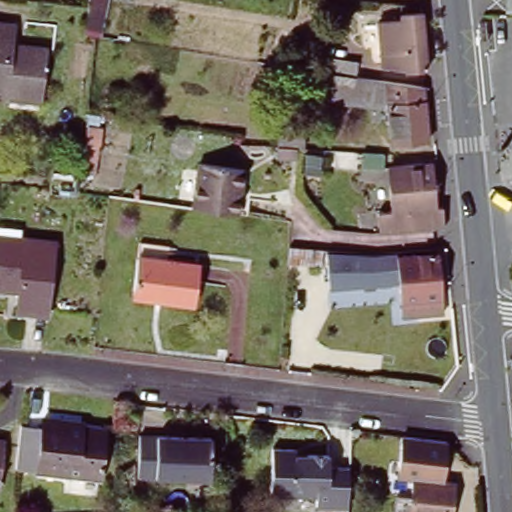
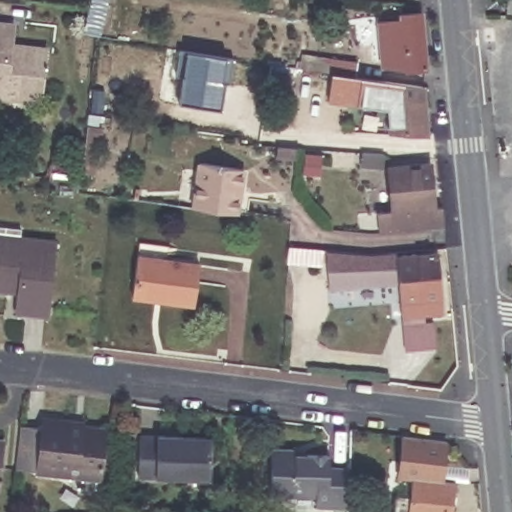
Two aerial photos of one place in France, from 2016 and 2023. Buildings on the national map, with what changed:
unchanged [(407,70),(407,65),(383,67),(380,25),(403,23),(403,15),(423,13),(427,68),(407,70)]
unchanged [(10,93),(9,100),(0,99),(0,23),(13,25),(11,45),(45,49),(40,96),(10,93)]
new [(178,49),(233,58),(228,83),(222,82),(220,94),(222,95),(219,109),(177,101),(181,75),(173,74),(178,49)]
unchanged [(331,62),(348,64),(357,66),(356,79),(349,79),(329,76),(331,62)]
unchanged [(429,144),(391,148),(388,113),(346,107),(331,105),(335,80),(349,81),(424,91),(429,144)]
unchanged [(298,148),(278,146),(279,129),(306,131),(304,148),(298,148)]
unchanged [(375,226),(373,207),(389,207),(384,161),(426,158),(429,203),(437,203),(439,223),(375,226)]
unchanged [(195,210),(201,167),(245,172),(239,216),(195,210)]
unchanged [(15,291),(0,289),(0,242),(18,244),(18,238),(53,242),(44,315),(13,311),(15,291)]
unchanged [(441,318),(398,320),(394,286),(326,289),(323,264),(320,263),(289,261),(289,244),(323,247),(434,247),(441,318)]
unchanged [(131,300),(135,266),(137,251),(166,255),(163,270),(196,274),(192,312),(167,309),(131,304),(131,300)]
unchanged [(31,474),(37,420),(63,423),(62,427),(100,431),(94,482),(31,474)]
unchanged [(206,437),(205,480),(133,477),(134,435),(206,437)]
unchanged [(449,443),(446,467),(403,462),(406,438),(449,443)]
unchanged [(291,452),(291,457),(324,457),(324,469),(344,469),(344,509),(313,509),(313,499),(266,499),(267,452),(291,452)]
unchanged [(416,484),(401,483),(403,462),(446,467),(444,488),(455,489),(451,512),(393,512),(394,499),(413,501),(416,484)]

